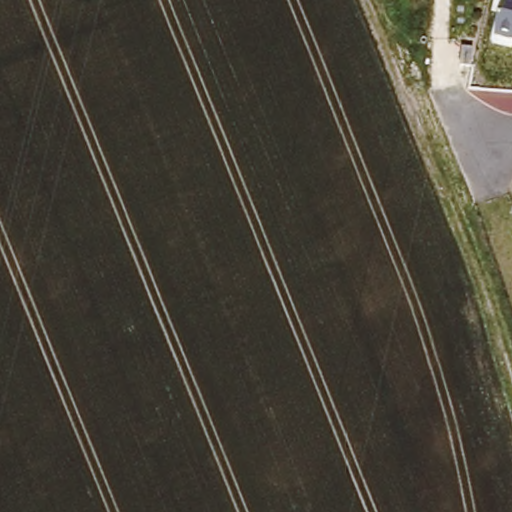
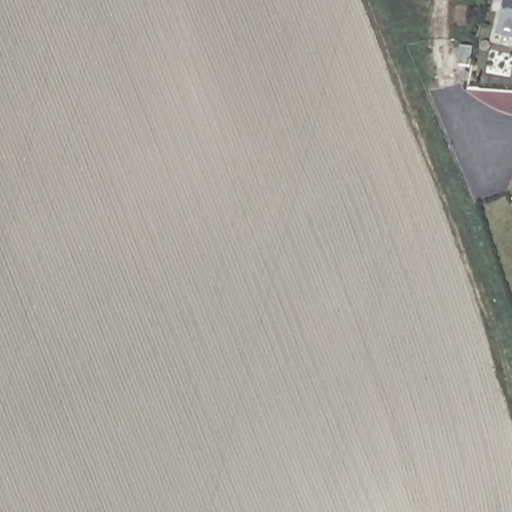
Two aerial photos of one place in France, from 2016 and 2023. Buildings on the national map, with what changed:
unchanged [(493,37),(504,0),(512,0),(512,42),(493,37)]

